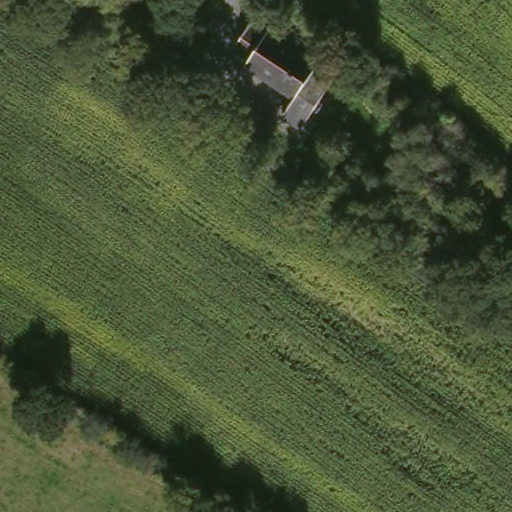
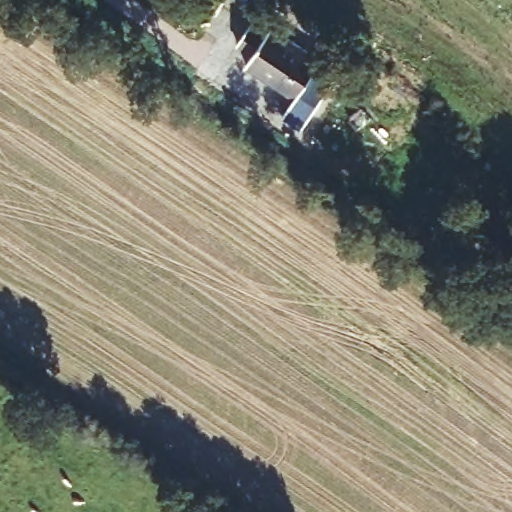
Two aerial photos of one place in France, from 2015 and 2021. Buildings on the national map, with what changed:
unchanged [(257,23),(323,67),(317,78),(336,91),(303,139),(282,126),(295,107),(244,74),(252,63),(237,54),(257,23)]

